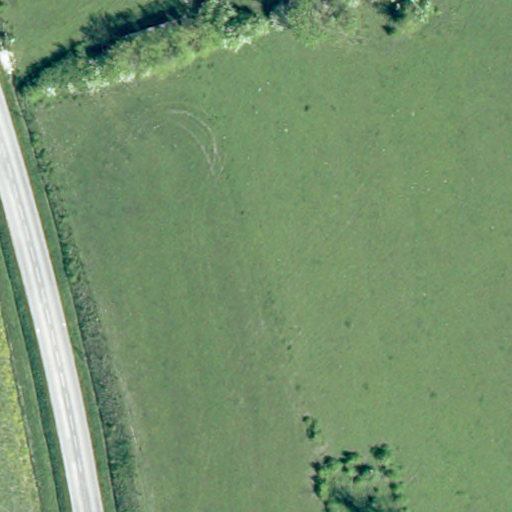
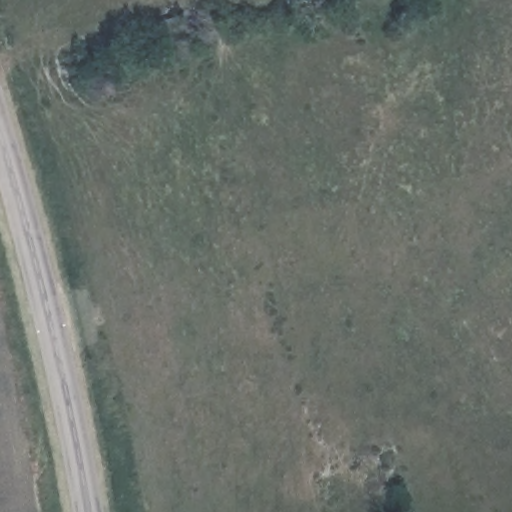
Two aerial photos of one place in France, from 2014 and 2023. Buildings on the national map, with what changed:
unchanged [(197,24),(207,21),(210,29),(88,69),(82,50),(194,15),(197,24)]

